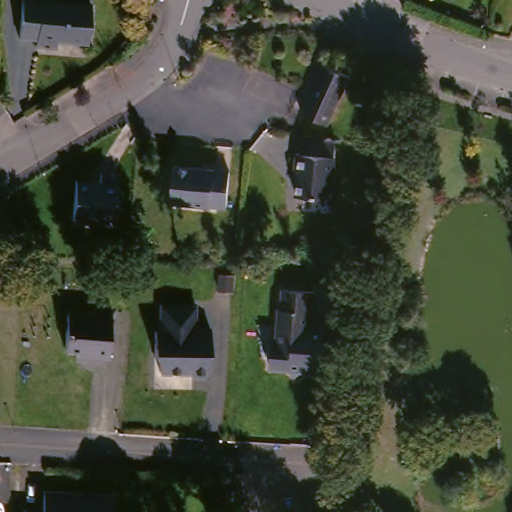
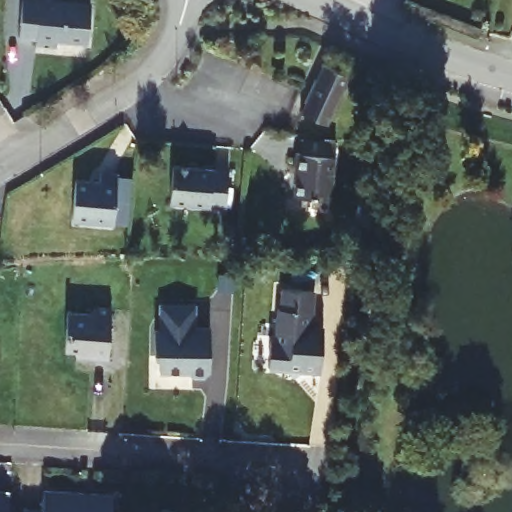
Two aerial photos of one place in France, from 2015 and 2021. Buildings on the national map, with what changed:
unchanged [(85,41),(54,39),(53,47),(31,45),(31,36),(14,35),(17,0),(76,0),(88,1),(85,41)]
unchanged [(296,112),(319,64),(346,76),(323,125),(296,112)]
unchanged [(330,200),(296,196),(298,171),(295,171),(297,154),(300,154),(302,138),(325,140),(336,141),(330,200)]
unchanged [(227,169),(224,205),(169,200),(172,164),(227,169)]
unchanged [(117,225),(77,221),(80,182),(104,185),(105,175),(122,176),(117,225)]
unchanged [(313,292),(311,328),(323,328),(320,372),(302,371),(293,378),(286,370),(268,369),(270,342),(275,342),(277,310),(280,310),(282,290),(313,292)]
unchanged [(160,302),(197,303),(196,324),(209,325),(207,375),(157,370),(160,302)]
unchanged [(111,354),(79,352),(79,345),(67,345),(70,309),(96,310),(97,304),(114,305),(111,354)]
unchanged [(109,512),(22,512),(22,503),(41,505),(42,485),(111,488),(109,512)]

